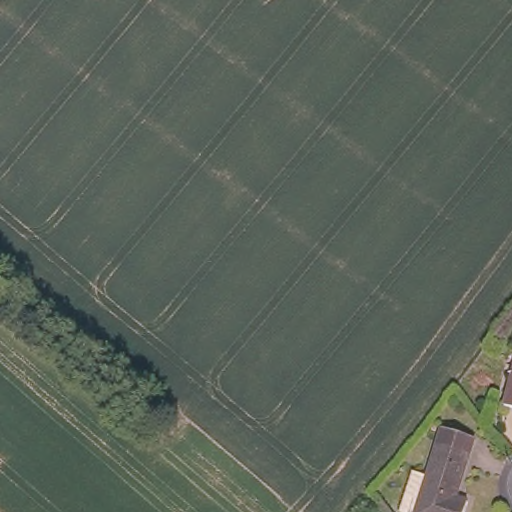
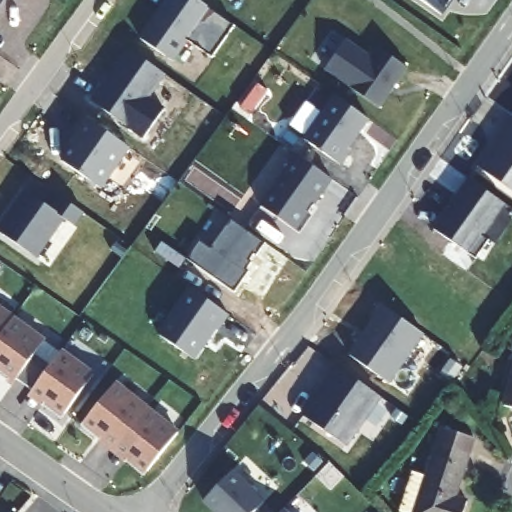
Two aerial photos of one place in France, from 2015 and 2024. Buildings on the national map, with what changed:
new [(0,0),(4,0),(0,6),(0,0)]
new [(174,61),(140,37),(166,0),(198,0),(233,26),(212,57),(188,41),(174,61)]
new [(425,0),(446,0),(439,10),(425,0)]
new [(344,36),(368,52),(375,43),(405,64),(377,104),(322,66),(344,36)]
new [(90,100),(128,46),(167,74),(150,99),(165,109),(143,139),(90,100)]
new [(332,92),(367,115),(345,145),(347,146),(338,161),(302,136),(332,92)]
new [(487,146),(490,149),(503,131),(502,129),(512,114),(512,188),(475,162),(487,146)]
new [(62,161),(90,120),(130,149),(103,189),(62,161)]
new [(294,151),(329,175),(293,227),(258,202),(294,151)]
new [(467,175),(503,200),(480,232),(487,236),(473,255),(431,225),(467,175)]
new [(0,227),(26,191),(48,206),(57,194),(85,213),(75,227),(65,220),(37,259),(0,233),(0,227)]
new [(202,240),(212,247),(232,218),(267,244),(229,287),(189,258),(202,240)]
new [(157,332),(188,287),(228,315),(196,360),(157,332)]
new [(30,395),(34,390),(18,377),(12,383),(0,374),(0,302),(47,337),(35,353),(50,364),(62,346),(95,372),(63,417),(30,395)]
new [(348,354),(382,305),(425,334),(390,383),(348,354)]
new [(388,412),(377,427),(370,422),(348,447),(302,414),(336,365),(383,398),(379,405),(388,412)]
unchanged [(503,401),(512,369),(512,403),(503,401)]
new [(144,475),(82,423),(118,380),(180,430),(144,475)]
unchanged [(461,512),(411,512),(432,445),(437,426),(470,436),(465,453),(465,455),(453,497),(464,501),(461,512)]
new [(230,467),(262,498),(250,512),(216,512),(201,497),(230,467)]
new [(283,508),(287,512),(279,512),(283,508)]

